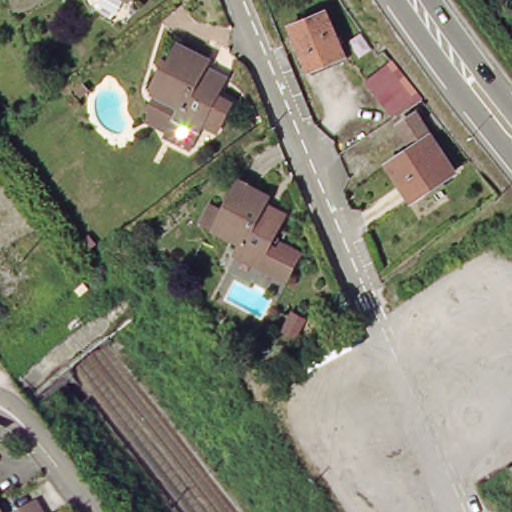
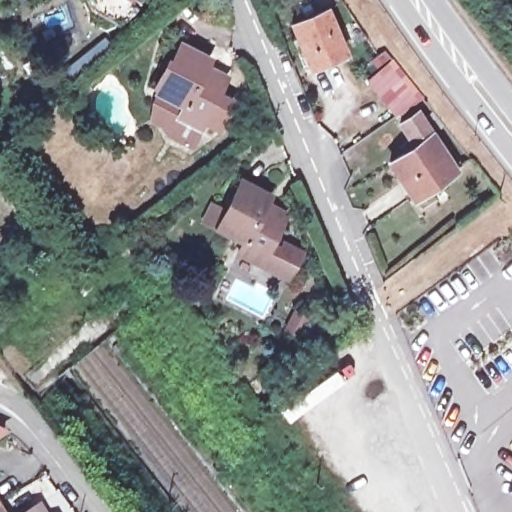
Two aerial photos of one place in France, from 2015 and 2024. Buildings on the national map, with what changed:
unchanged [(325,12),(343,56),(311,70),(292,26),(325,12)]
unchanged [(220,93),(233,101),(218,129),(203,120),(201,125),(180,114),(185,102),(159,87),(185,40),(211,55),(207,64),(229,76),(220,93)]
unchanged [(395,62),(427,102),(400,122),(369,83),(395,62)]
unchanged [(185,102),(180,114),(201,125),(190,145),(168,134),(170,130),(167,122),(153,114),(155,100),(159,87),(185,102)]
unchanged [(413,141),(403,128),(417,117),(428,132),(460,174),(423,201),(397,165),(405,159),(400,151),(413,141)]
unchanged [(455,132),(478,160),(472,165),(450,137),(455,132)]
unchanged [(307,255),(292,280),(285,276),(265,264),(244,252),(249,243),(223,228),(224,227),(212,220),(225,196),(237,202),(250,180),(275,195),(270,202),(292,215),(276,244),(286,250),(290,244),(307,255)]
unchanged [(315,315),(305,332),(292,325),(302,308),(315,315)]
unchanged [(0,432),(0,428),(3,430),(0,432)]
unchanged [(37,505),(42,512),(25,512),(25,511),(37,505)]

